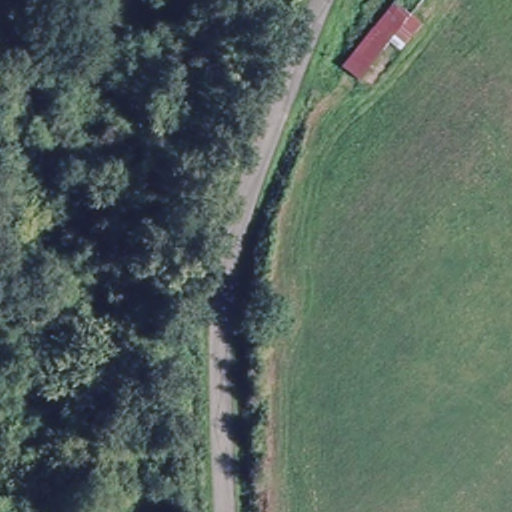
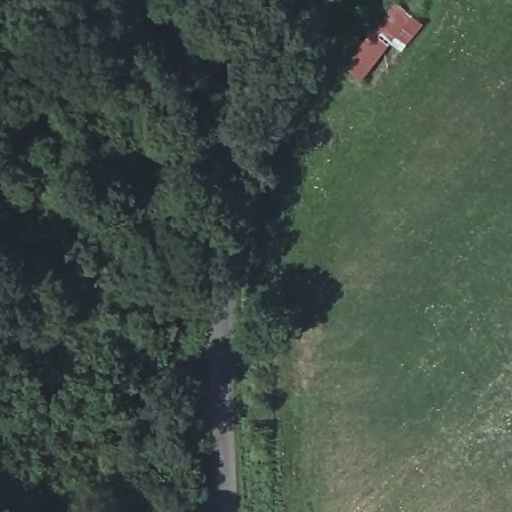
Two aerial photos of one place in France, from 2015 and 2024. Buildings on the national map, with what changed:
unchanged [(427,31),(370,97),(357,86),(366,75),(349,57),(393,3),(427,31)]

